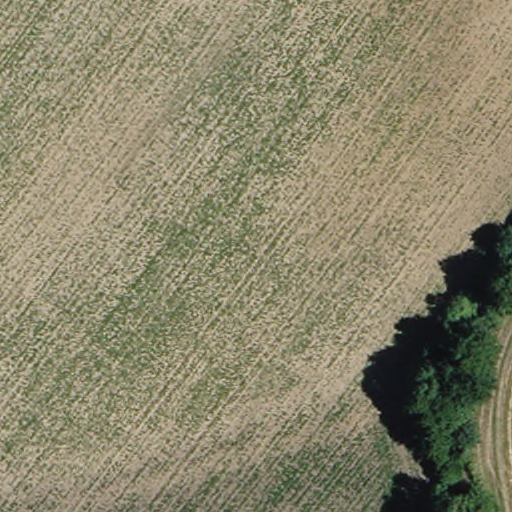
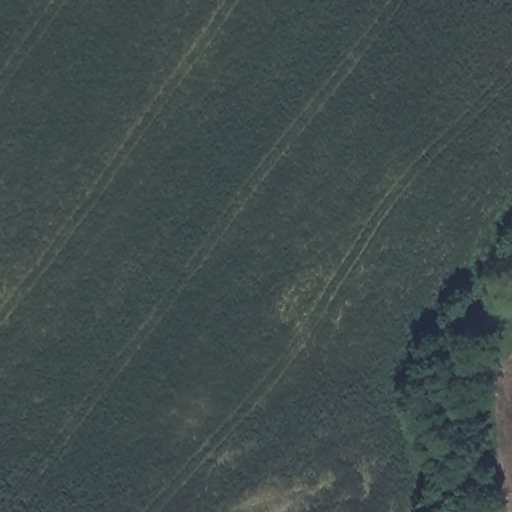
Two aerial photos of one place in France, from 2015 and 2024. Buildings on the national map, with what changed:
[]

